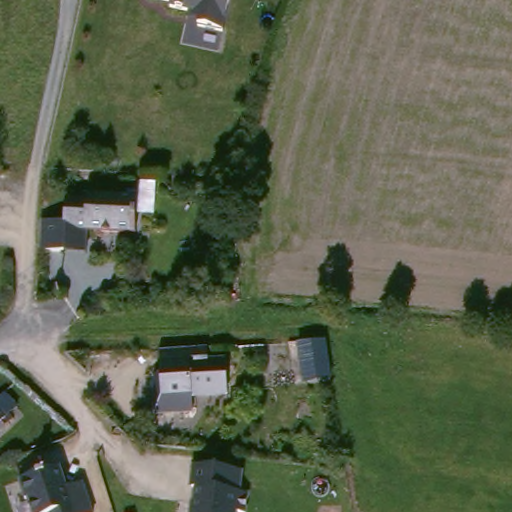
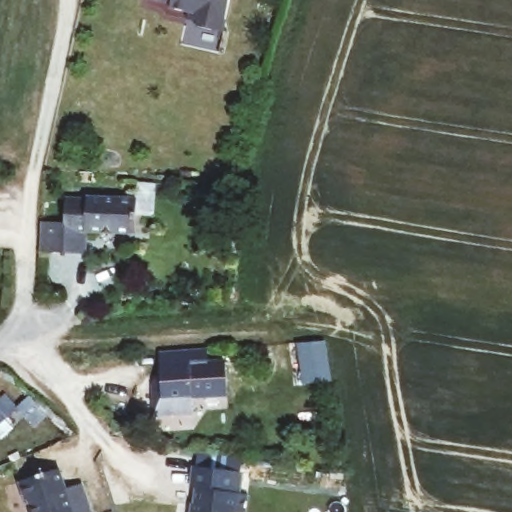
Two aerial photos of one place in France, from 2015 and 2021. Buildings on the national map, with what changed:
unchanged [(215,37),(190,32),(192,20),(161,14),(162,8),(138,4),(139,0),(222,0),(215,37)]
unchanged [(64,254),(60,254),(34,254),(35,239),(36,222),(61,224),(62,201),(83,202),(84,197),(137,198),(133,235),(125,235),(83,232),(82,255),(64,254)]
unchanged [(298,344),(326,341),(331,381),(303,385),(298,344)]
unchanged [(222,365),(225,395),(190,398),(191,413),(154,417),(151,390),(158,390),(155,357),(185,353),(187,368),(222,365)]
unchanged [(0,422),(0,411),(6,417),(0,422)]
unchanged [(242,488),(251,489),(249,509),(237,508),(237,512),(195,512),(196,501),(198,501),(200,486),(195,485),(197,462),(244,467),(242,488)]
unchanged [(90,512),(30,512),(27,502),(25,503),(19,484),(59,472),(65,492),(82,486),(90,512)]

